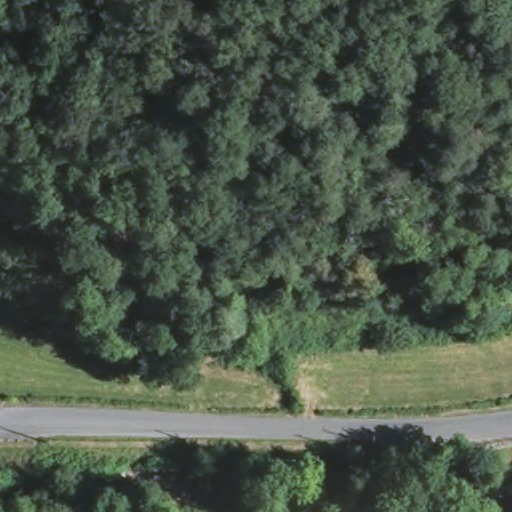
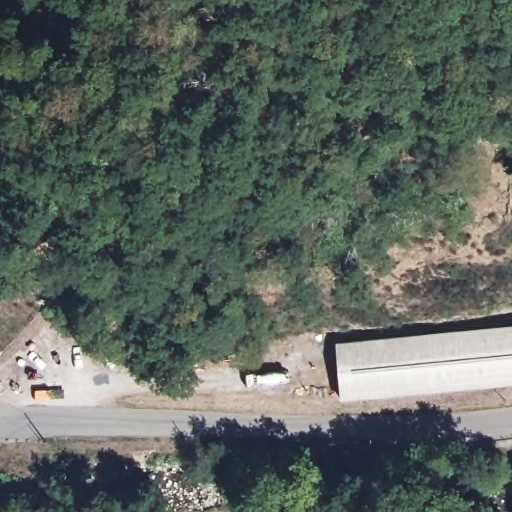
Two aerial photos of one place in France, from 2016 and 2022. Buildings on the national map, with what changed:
new [(512,388),(340,395),(338,341),(512,334),(512,388)]

